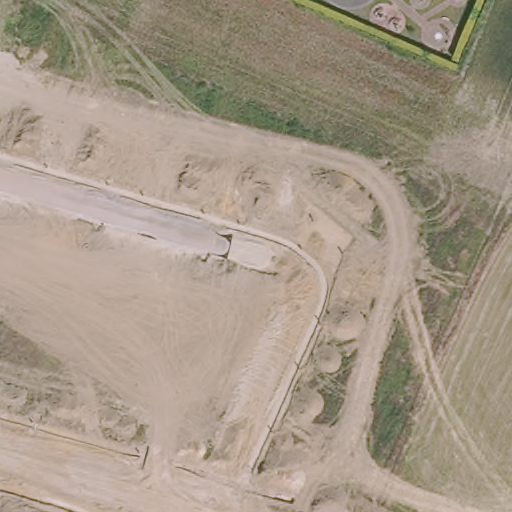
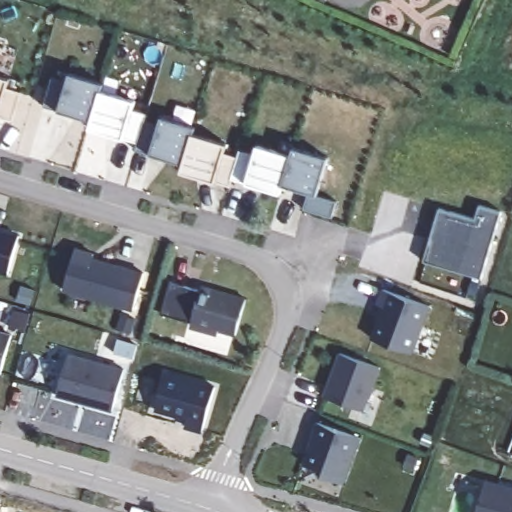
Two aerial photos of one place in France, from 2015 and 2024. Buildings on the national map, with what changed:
new [(50,78),(65,82),(67,73),(102,83),(100,91),(90,120),(42,106),(50,78)]
new [(0,117),(0,77),(7,79),(4,88),(19,92),(11,120),(0,117)]
new [(133,100),(130,109),(145,114),(143,121),(136,142),(87,128),(90,120),(100,91),(133,100)]
new [(156,125),(160,116),(194,126),(191,133),(182,163),(135,149),(136,142),(143,121),(156,125)]
new [(225,143),(223,152),(236,156),(231,178),(229,186),(180,171),(182,163),(191,133),(225,143)]
new [(236,156),(238,149),(253,154),(256,144),(290,154),(282,184),(280,192),(231,178),(236,156)]
unchanged [(292,146),(326,156),(315,194),(335,200),(330,216),(302,208),(306,191),(282,184),(290,154),(292,146)]
new [(437,212),(474,223),(480,205),(502,212),(481,285),(421,266),(437,212)]
new [(17,237),(6,273),(0,271),(0,232),(17,237)]
new [(63,289),(75,248),(92,253),(91,257),(142,272),(131,309),(63,289)]
new [(210,293),(211,289),(244,299),(234,333),(215,328),(215,332),(190,326),(192,322),(160,312),(168,281),(210,293)]
new [(371,337),(382,305),(376,303),(381,288),(428,305),(411,352),(371,337)]
new [(10,336),(0,369),(0,333),(10,336)]
new [(117,340),(136,345),(133,358),(113,353),(117,340)]
new [(114,411),(57,395),(69,352),(124,368),(114,411)]
new [(378,367),(363,410),(322,394),(338,353),(378,367)]
new [(166,372),(216,385),(203,432),(185,426),(187,417),(156,410),(166,372)]
new [(358,436),(341,482),(322,475),(316,467),(304,462),(314,437),(311,436),(316,421),(358,436)]
new [(512,488),(512,512),(475,512),(485,480),(512,488)]

